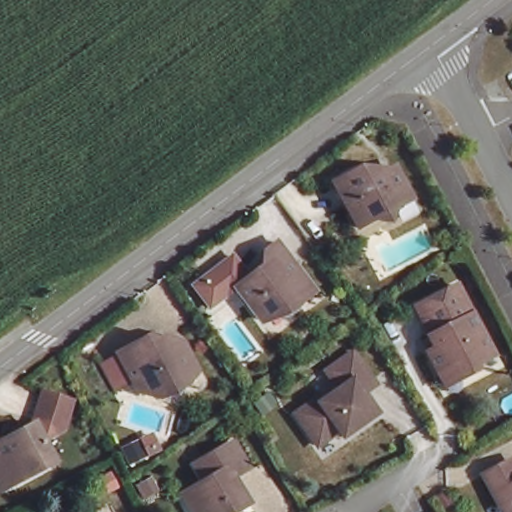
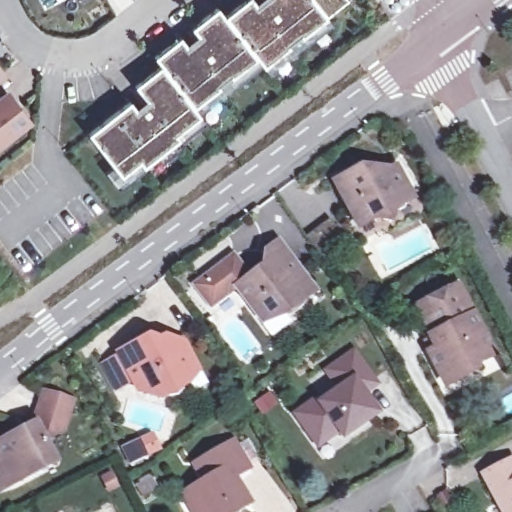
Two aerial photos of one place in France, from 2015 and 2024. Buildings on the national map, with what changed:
new [(142,165),(138,161),(121,174),(88,132),(130,99),(136,106),(146,98),(136,84),(161,64),(154,55),(180,35),(186,42),(197,33),(191,26),(218,6),(224,15),(243,0),(254,0),(255,1),(257,0),(347,0),(301,35),(301,34),(289,43),(296,53),(291,55),(270,73),(264,65),(256,56),(231,76),(230,74),(218,84),(226,93),(221,96),(199,113),(200,114),(176,133),(179,136),(175,139),(181,148),(177,150),(161,164),(154,155),(142,165)]
new [(0,74),(0,60),(7,69),(0,74)]
new [(8,89),(30,118),(0,142),(0,93),(1,95),(8,89)]
unchanged [(359,222),(335,177),(360,163),(391,164),(397,161),(414,193),(396,203),(392,217),(377,213),(359,222)]
unchanged [(304,300),(286,314),(283,310),(269,321),(253,301),(249,304),(237,287),(273,260),(266,252),(280,242),(312,285),(316,290),(304,300)]
new [(237,287),(210,309),(191,284),(234,252),(253,275),(237,287)]
unchanged [(439,371),(429,350),(432,349),(427,338),(432,335),(431,334),(433,333),(419,305),(460,284),(494,353),(478,361),(476,367),(459,376),(446,382),(439,371)]
unchanged [(186,372),(189,378),(162,393),(144,388),(138,376),(135,377),(119,348),(141,337),(144,343),(167,332),(184,337),(195,358),(199,366),(186,372)]
unchanged [(340,436),(336,430),(314,445),(292,414),(315,398),(318,403),(337,389),(324,371),(350,352),(369,379),(372,384),(359,393),(373,413),(340,436)]
unchanged [(0,443),(0,444),(21,433),(39,422),(38,419),(45,404),(50,391),(78,402),(73,416),(68,429),(49,439),(58,454),(33,468),(35,473),(19,482),(5,489),(0,480),(0,443)]
unchanged [(201,482),(191,464),(230,441),(245,467),(227,479),(233,489),(236,487),(246,503),(230,512),(190,512),(180,494),(201,482)]
unchanged [(480,474),(512,458),(512,512),(500,512),(480,474)]

